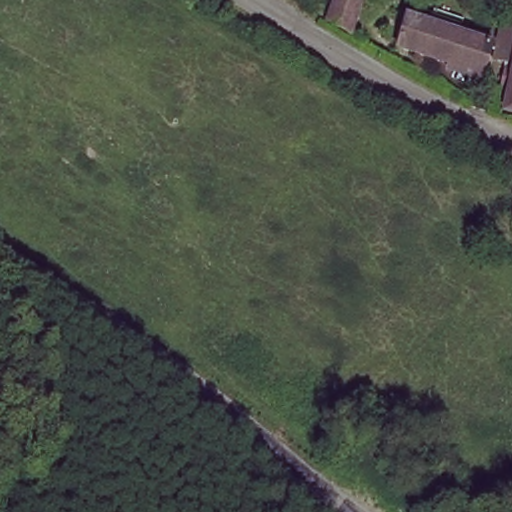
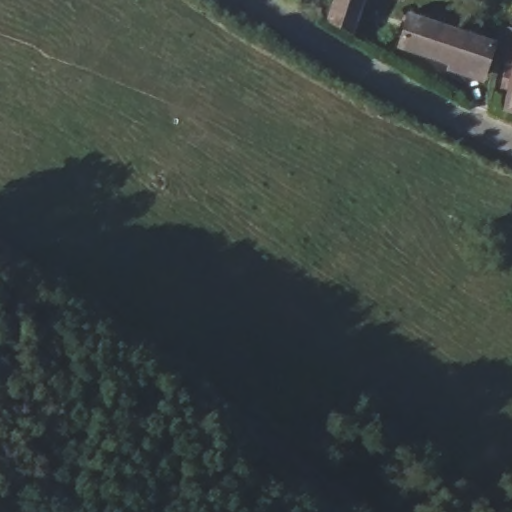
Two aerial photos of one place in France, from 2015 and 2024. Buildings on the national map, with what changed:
unchanged [(331,18),(338,0),(363,0),(354,31),(331,18)]
unchanged [(400,44),(410,14),(494,40),(485,72),(400,44)]
unchanged [(512,27),(512,86),(505,84),(510,62),(497,59),(504,25),(512,27)]
unchanged [(509,106),(512,90),(512,107),(509,106)]

